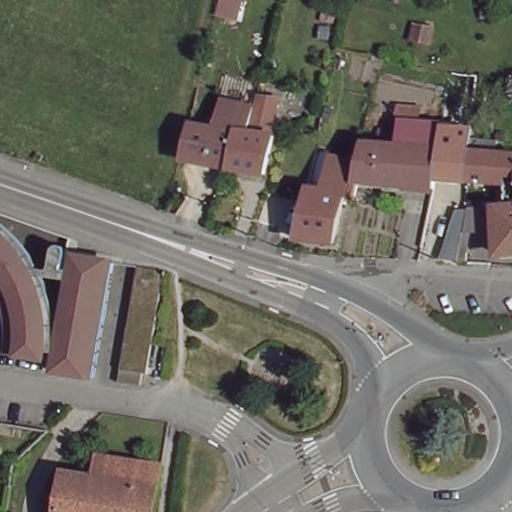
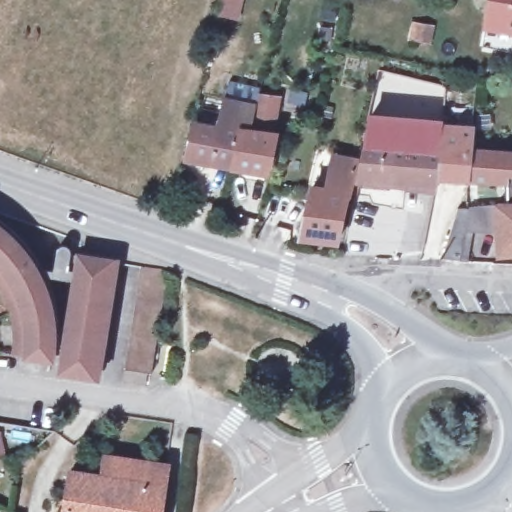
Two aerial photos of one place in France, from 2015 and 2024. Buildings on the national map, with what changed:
new [(481,30),(487,0),(512,0),(512,36),(481,30)]
unchanged [(398,144),(399,100),(420,100),(421,118),(445,119),(443,150),(398,144)]
unchanged [(257,111),(260,101),(280,106),(272,143),(275,145),(270,161),(263,183),(231,175),(189,164),(197,125),(218,129),(225,103),(257,111)]
unchanged [(473,122),(472,143),(470,151),(512,155),(512,250),(503,251),(500,228),(474,229),(470,262),(464,261),(462,261),(468,215),(469,206),(507,201),(505,182),(468,181),(440,181),(442,166),(443,150),(445,119),(473,122)]
unchanged [(398,144),(443,150),(442,166),(440,181),(440,187),(437,190),(358,178),(365,140),(398,144)]
unchanged [(356,160),(352,191),(347,196),(338,243),(300,235),(305,202),(307,190),(325,192),(332,156),(356,160)]
unchanged [(12,244),(22,254),(29,263),(35,275),(42,287),(48,301),(53,317),(55,326),(56,333),(58,352),(56,365),(22,361),(23,346),(22,336),(18,321),(17,310),(10,297),(3,285),(0,281),(0,232),(5,236),(12,244)]
unchanged [(111,263),(93,381),(62,376),(71,308),(77,258),(111,263)]
unchanged [(147,370),(143,370),(142,383),(117,380),(133,268),(161,273),(147,370)]
unchanged [(8,460),(0,462),(0,434),(2,434),(8,460)]
unchanged [(156,512),(63,512),(67,474),(98,477),(102,460),(163,468),(156,512)]

